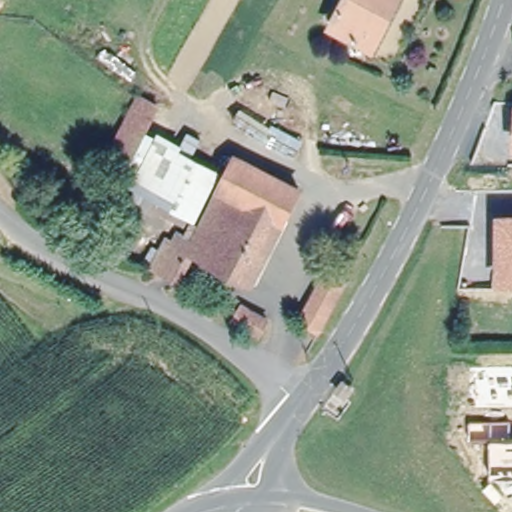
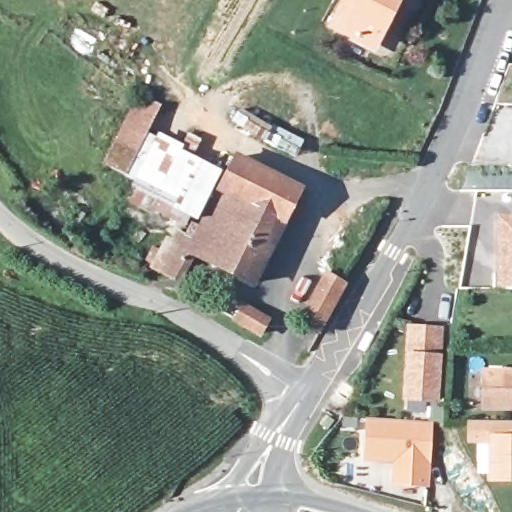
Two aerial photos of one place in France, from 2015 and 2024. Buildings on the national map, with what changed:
unchanged [(396,0),(372,46),(333,26),(346,0),(396,0)]
unchanged [(221,166),(197,215),(154,192),(139,184),(142,180),(102,160),(137,89),(159,100),(145,129),(162,137),(177,145),(177,144),(221,166)]
new [(230,122),(239,106),(302,142),(293,158),(230,122)]
unchanged [(299,184),(251,278),(192,248),(178,274),(153,262),(167,236),(172,239),(177,229),(193,237),(236,152),(299,184)]
unchanged [(512,287),(494,287),(495,215),(512,215),(512,287)]
unchanged [(299,320),(323,280),(342,291),(319,331),(299,320)]
new [(401,402),(404,352),(406,325),(443,326),(441,355),(437,402),(401,402)]
unchanged [(512,374),(512,407),(485,407),(486,373),(512,374)]
unchanged [(511,440),(512,440),(512,478),(489,477),(488,440),(469,439),(469,417),(512,420),(511,440)]
new [(394,462),(363,462),(366,419),(433,421),(430,488),(392,487),(394,462)]

